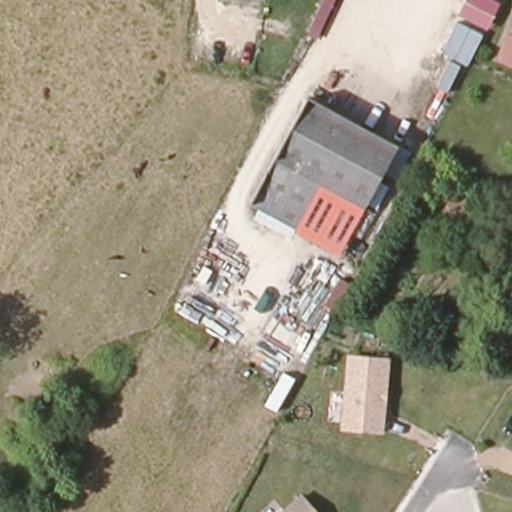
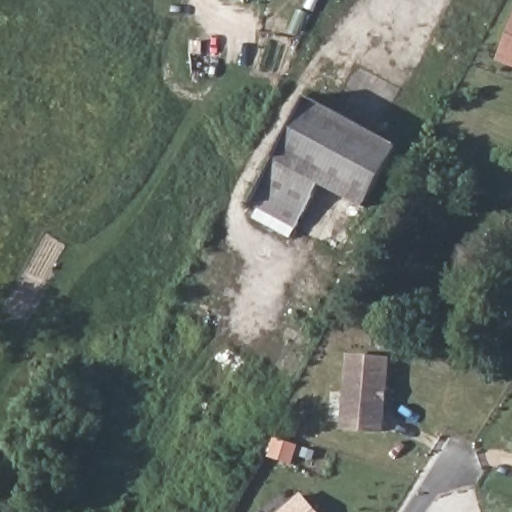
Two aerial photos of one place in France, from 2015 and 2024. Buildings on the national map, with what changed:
unchanged [(512,16),(512,56),(498,51),(512,16)]
unchanged [(245,202),(302,95),(397,146),(365,208),(315,183),(293,227),(245,202)]
unchanged [(343,427),(352,355),(391,359),(382,432),(343,427)]
unchanged [(317,512),(281,512),(302,494),(317,512)]

